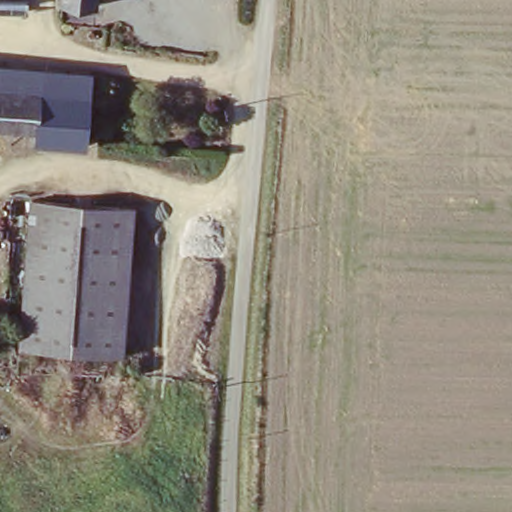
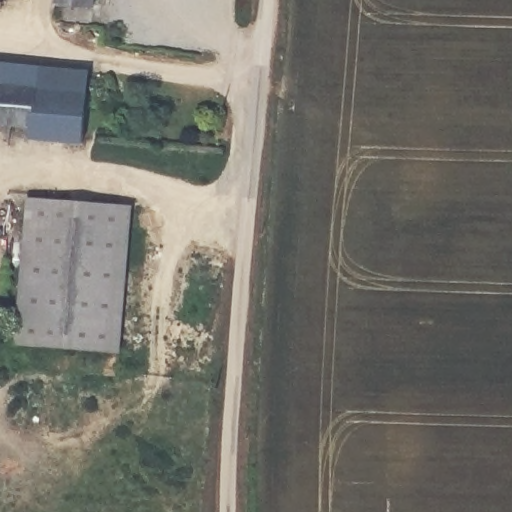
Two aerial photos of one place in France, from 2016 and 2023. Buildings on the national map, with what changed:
unchanged [(59,0),(93,0),(92,5),(59,0)]
unchanged [(95,71),(92,85),(0,75),(0,60),(95,71)]
unchanged [(92,85),(87,136),(34,130),(34,120),(0,116),(0,75),(92,85)]
unchanged [(132,205),(120,351),(19,342),(32,196),(132,205)]

